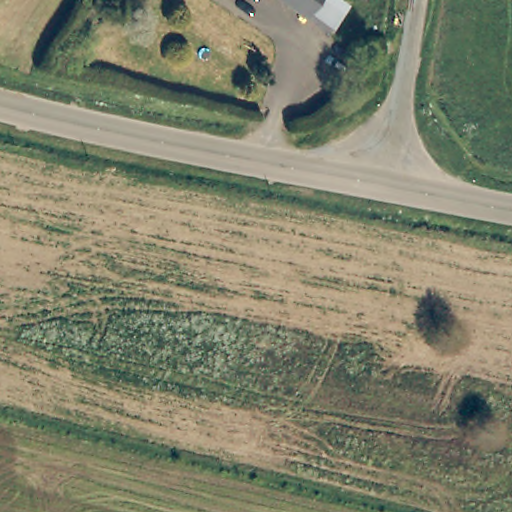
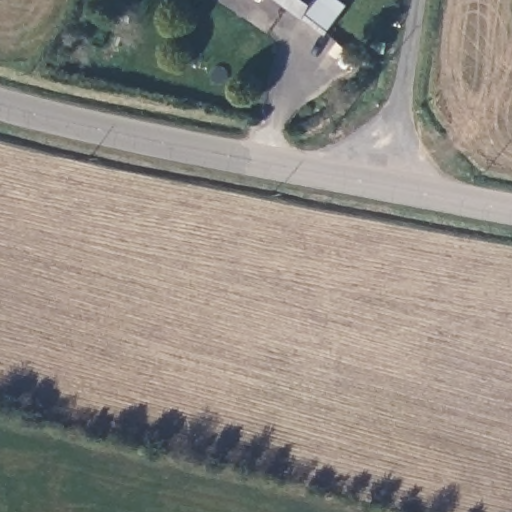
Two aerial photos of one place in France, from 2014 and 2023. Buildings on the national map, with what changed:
unchanged [(282,0),(338,0),(348,8),(326,35),(282,0)]

